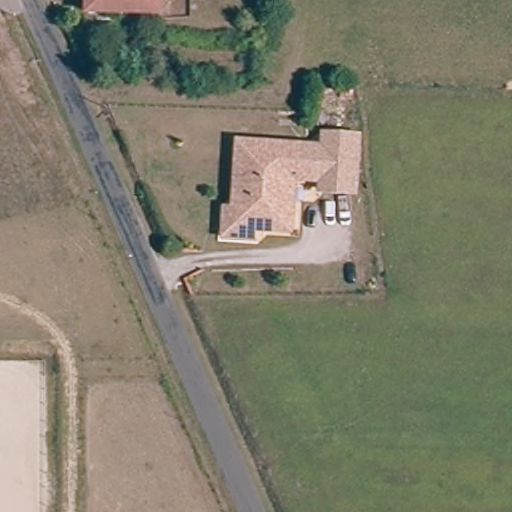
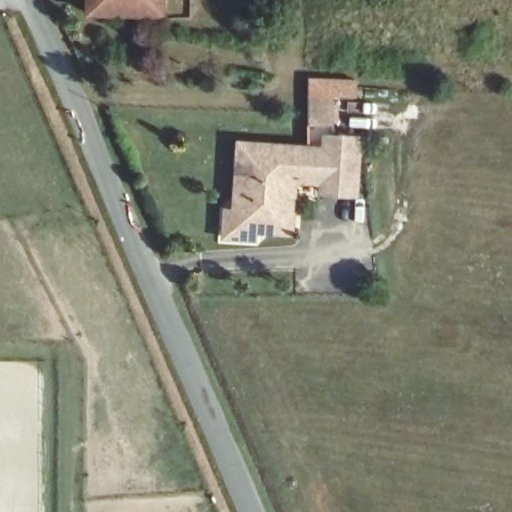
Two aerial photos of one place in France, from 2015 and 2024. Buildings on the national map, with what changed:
unchanged [(163,15),(86,14),(86,0),(163,0),(163,15)]
new [(358,79),(358,98),(335,98),(334,126),(308,126),(309,78),(358,79)]
unchanged [(221,232),(223,207),(232,208),(236,141),(321,146),(321,133),(354,135),(352,176),(351,190),(319,189),(320,178),(298,177),(298,171),(291,170),(287,228),(281,228),(250,226),(250,235),(221,232)]

